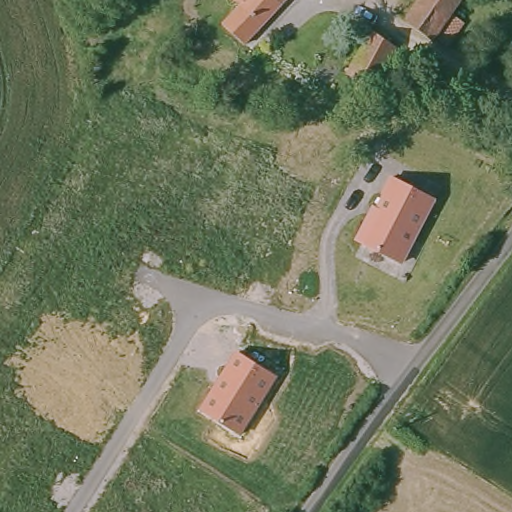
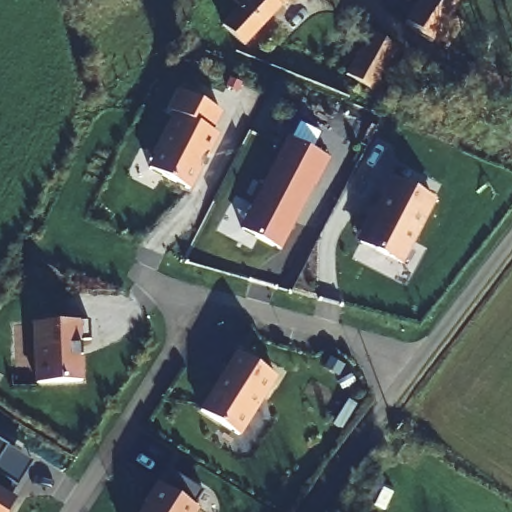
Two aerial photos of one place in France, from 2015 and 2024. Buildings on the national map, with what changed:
unchanged [(223,23),(238,11),(246,2),(241,7),(234,0),(289,0),(259,32),(244,46),(223,23)]
unchanged [(447,11),(459,19),(442,42),(432,35),(428,40),(401,22),(416,0),(455,0),(447,11)]
unchanged [(394,76),(382,70),(369,90),(341,73),(366,28),(409,53),(394,76)]
new [(223,112),(214,131),(220,134),(191,189),(148,168),(175,115),(169,112),(180,92),(223,112)]
new [(281,251),(238,228),(286,137),(329,160),(281,251)]
unchanged [(376,208),(384,196),(381,194),(391,176),(438,199),(404,265),(354,240),(373,206),(376,208)]
new [(88,320),(90,339),(83,340),(84,380),(36,383),(33,324),(88,320)]
unchanged [(280,377),(241,436),(199,409),(236,351),(280,377)]
new [(328,370),(333,361),(345,368),(340,377),(328,370)]
new [(3,377),(0,382),(0,375),(3,377)]
new [(0,512),(0,441),(8,446),(33,462),(9,497),(15,501),(8,512),(0,512)]
new [(198,512),(140,512),(157,483),(200,509),(198,512)]

